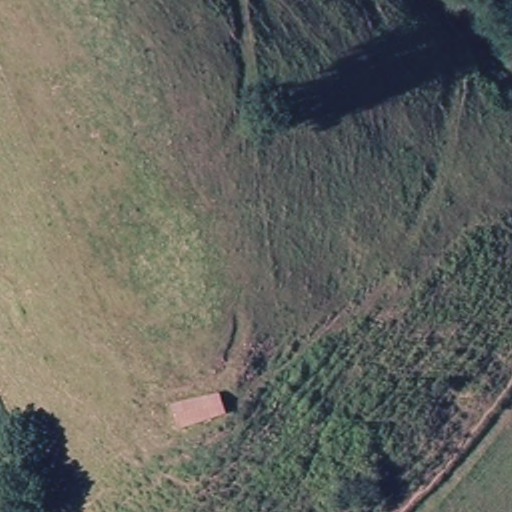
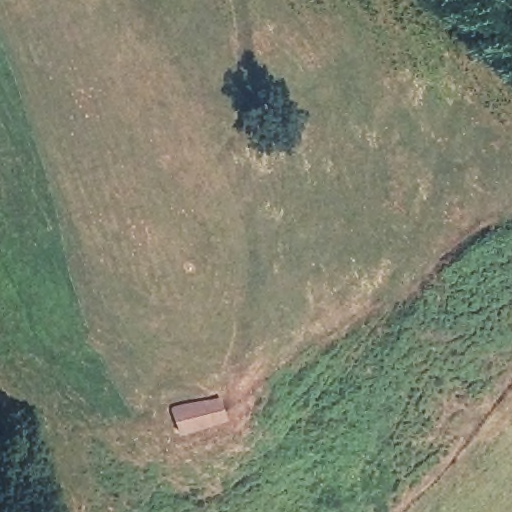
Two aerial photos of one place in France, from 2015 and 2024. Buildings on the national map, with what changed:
unchanged [(169,418),(220,404),(227,427),(175,441),(169,418)]

